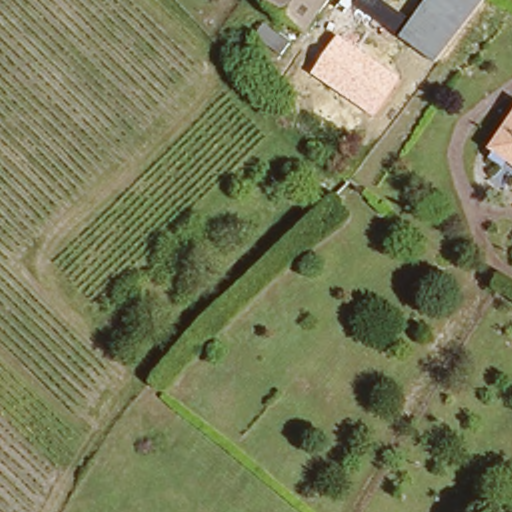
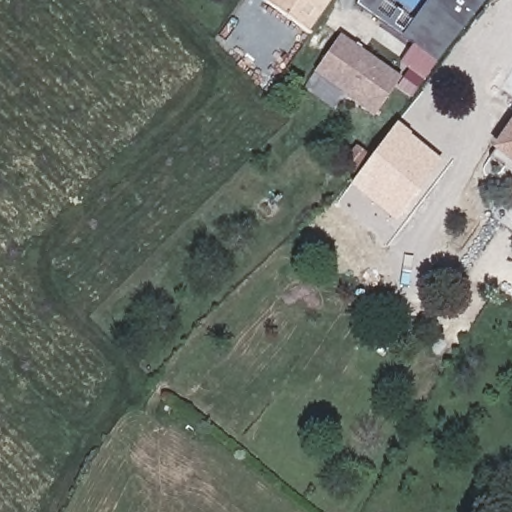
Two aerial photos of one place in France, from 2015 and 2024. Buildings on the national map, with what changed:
unchanged [(317,34),(266,4),(268,0),(337,0),(317,34)]
unchanged [(439,60),(354,3),(356,0),(388,0),(407,14),(417,0),(487,0),(439,60)]
unchanged [(280,57),(254,36),(264,21),(292,43),(280,57)]
unchanged [(375,117),(313,74),(340,36),(403,79),(375,117)]
unchanged [(512,113),(512,148),(495,136),(512,113)]
new [(350,185),(399,124),(446,161),(396,223),(350,185)]
unchanged [(495,136),(512,148),(512,166),(487,148),(495,136)]

